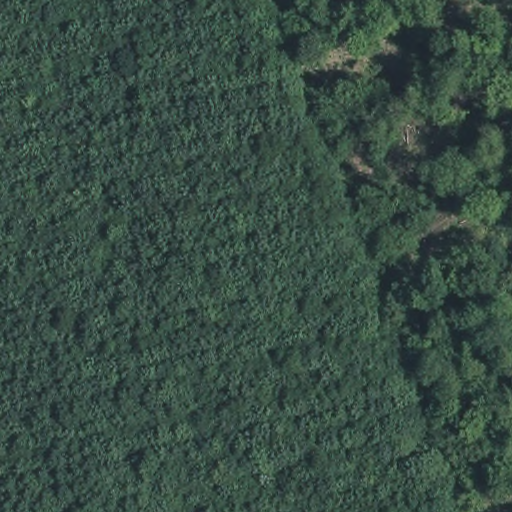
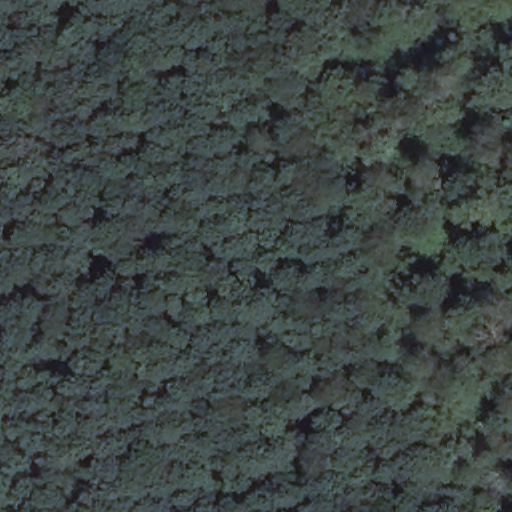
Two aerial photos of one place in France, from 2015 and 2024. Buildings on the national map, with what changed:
[]

